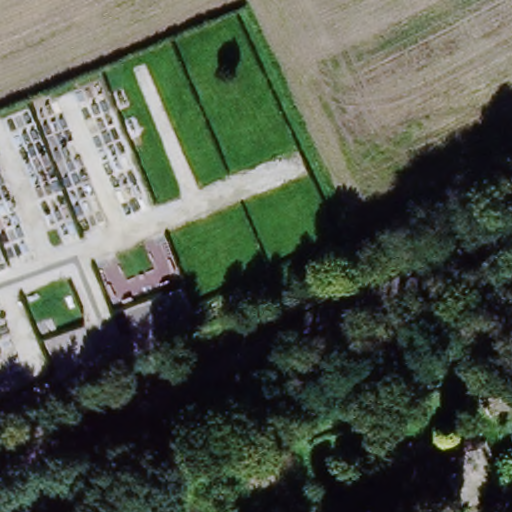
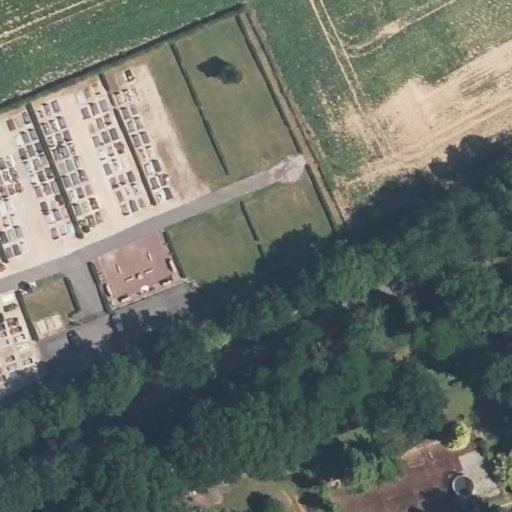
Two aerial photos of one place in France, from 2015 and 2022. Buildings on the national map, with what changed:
unchanged [(512,370),(512,377),(510,371),(512,370)]
unchanged [(506,478),(512,474),(512,493),(506,478)]

